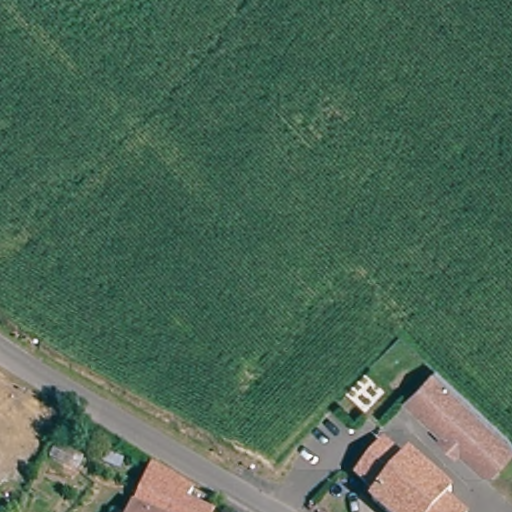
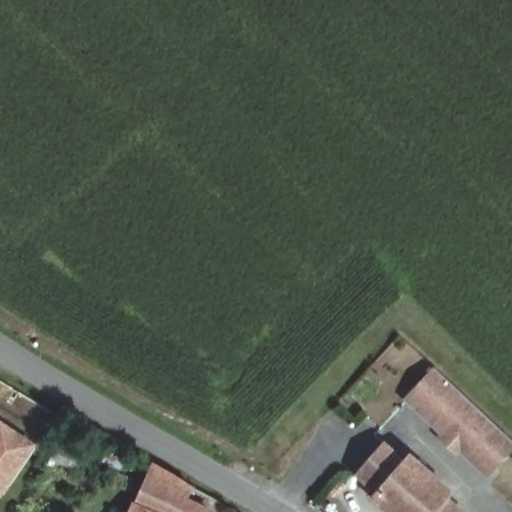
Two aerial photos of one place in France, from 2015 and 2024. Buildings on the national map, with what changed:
unchanged [(438,438),(447,428),(409,396),(435,366),(512,431),(512,452),(497,470),(468,446),(460,456),(438,438)]
new [(0,420),(1,419),(37,445),(1,497),(0,497),(0,420)]
demolished [(26,472),(0,459),(0,437),(34,453),(26,472)]
unchanged [(403,466),(409,458),(455,495),(449,502),(461,512),(379,512),(373,507),(378,500),(355,481),(382,448),(403,466)]
unchanged [(188,502),(206,512),(136,512),(155,474),(191,491),(188,502)]

